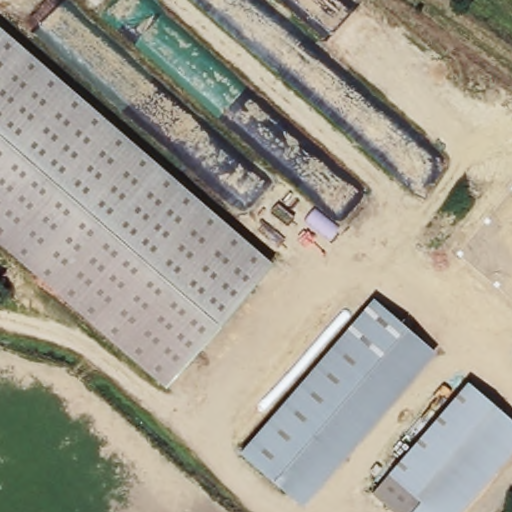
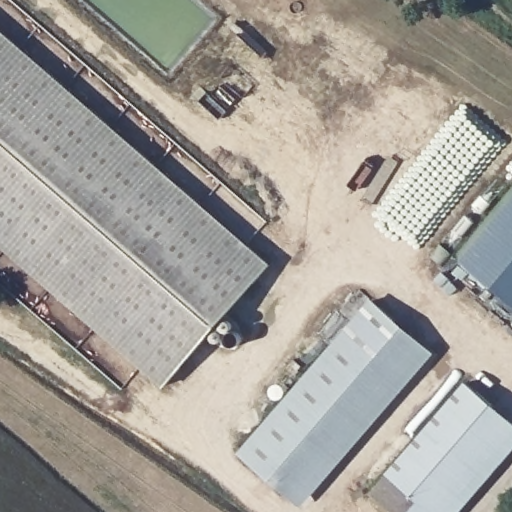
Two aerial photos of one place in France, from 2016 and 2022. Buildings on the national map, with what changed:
unchanged [(0,33),(269,266),(162,391),(0,250),(0,33)]
new [(512,192),(512,298),(460,256),(512,192)]
unchanged [(439,355),(307,510),(241,454),(375,298),(439,355)]
unchanged [(392,512),(371,494),(468,380),(512,421),(512,456),(465,512),(392,512)]

